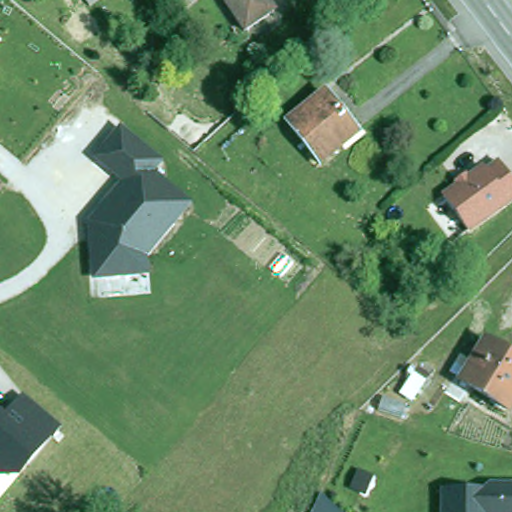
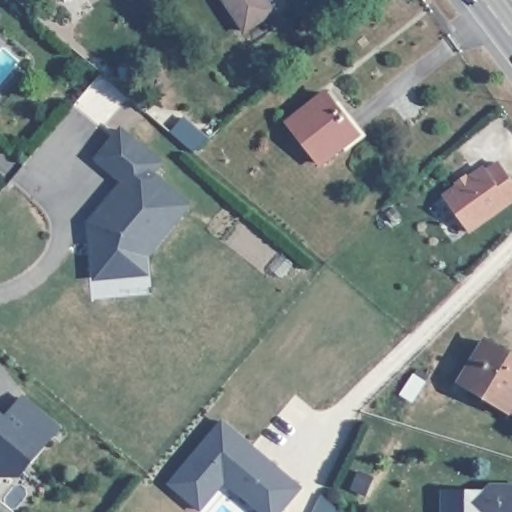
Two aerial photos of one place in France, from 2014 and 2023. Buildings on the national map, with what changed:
unchanged [(276,13),(244,33),(222,0),(267,0),(276,13)]
unchanged [(329,98),(360,136),(324,167),(293,129),(329,98)]
unchanged [(161,157),(153,170),(191,202),(173,221),(164,216),(136,249),(126,271),(93,274),(84,216),(115,182),(88,161),(118,125),(161,157)]
unchanged [(512,184),(512,203),(465,234),(438,195),(482,165),(487,169),(496,161),(512,184)]
unchanged [(508,405),(469,382),(492,341),(512,354),(512,398),(508,405)]
unchanged [(18,476),(0,477),(0,409),(3,412),(16,393),(58,427),(18,476)]
new [(199,512),(197,512),(163,483),(218,418),(300,487),(279,512),(257,512),(223,483),(199,512)]
unchanged [(484,484),(512,485),(512,512),(437,512),(437,492),(479,492),(484,484)]
unchanged [(308,512),(316,496),(346,512),(308,512)]

